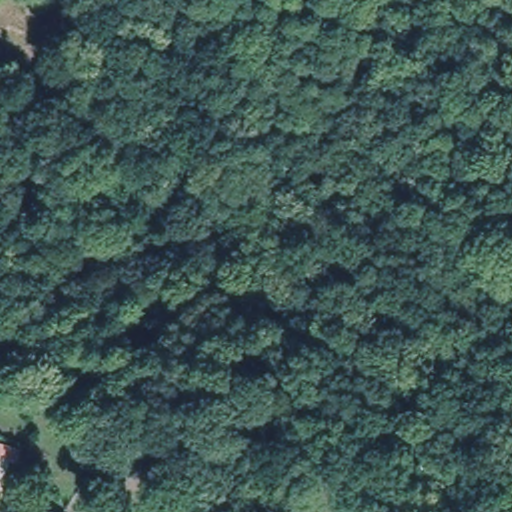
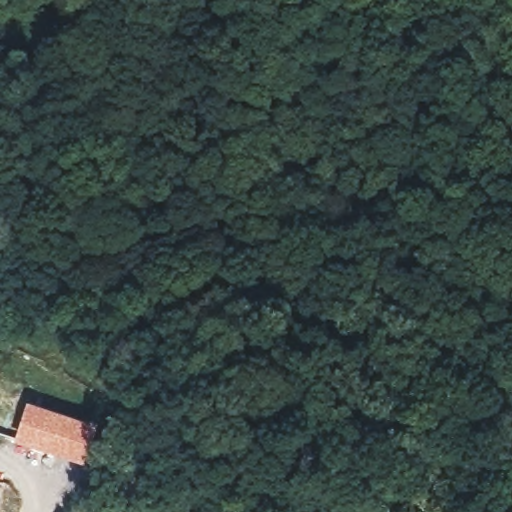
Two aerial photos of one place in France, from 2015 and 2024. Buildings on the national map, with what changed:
new [(25,402),(100,426),(87,465),(11,446),(25,402)]

